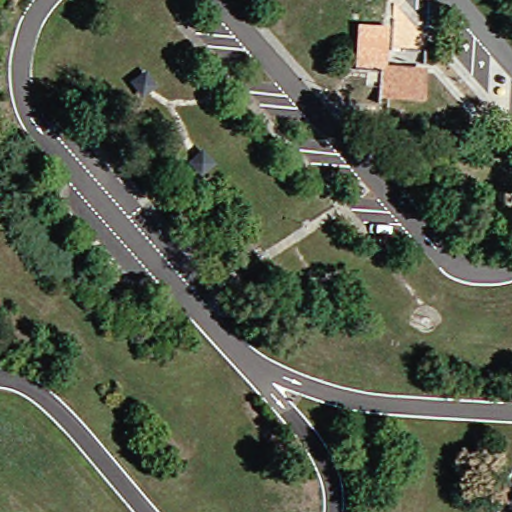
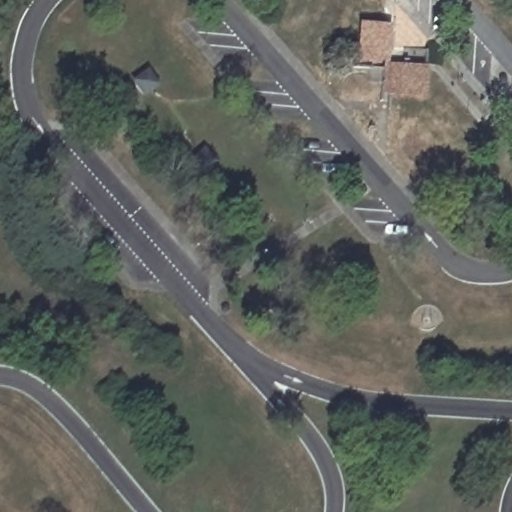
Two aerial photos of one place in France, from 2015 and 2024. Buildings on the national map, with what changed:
unchanged [(424,61),(425,96),(369,96),(369,69),(353,68),(355,19),(376,20),(376,0),(394,0),(392,58),(424,61)]

